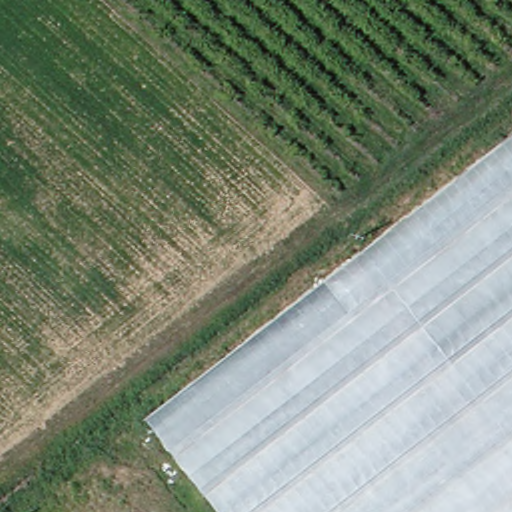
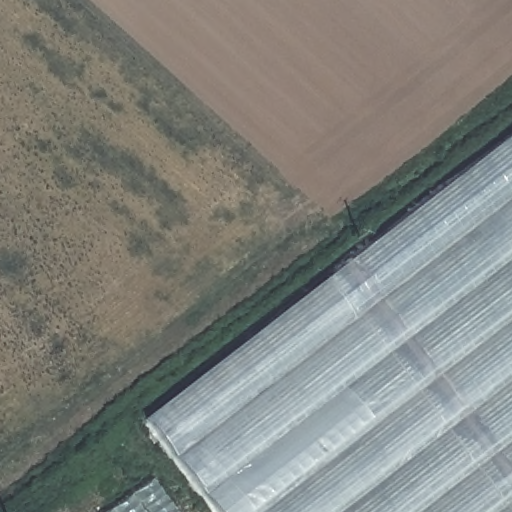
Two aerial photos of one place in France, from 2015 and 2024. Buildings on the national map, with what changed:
unchanged [(151,420),(512,140),(512,512),(223,512),(151,420)]
new [(149,482),(173,512),(107,512),(149,482)]

